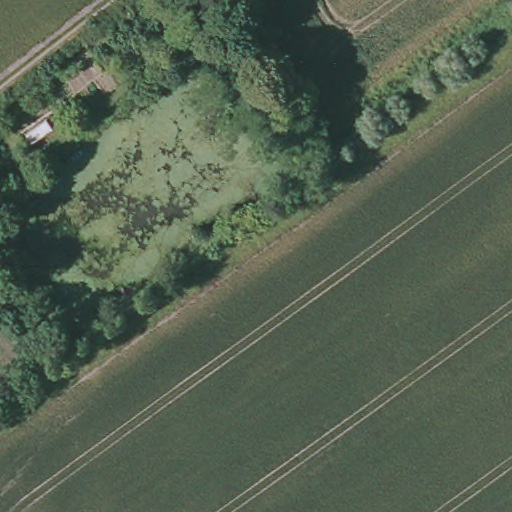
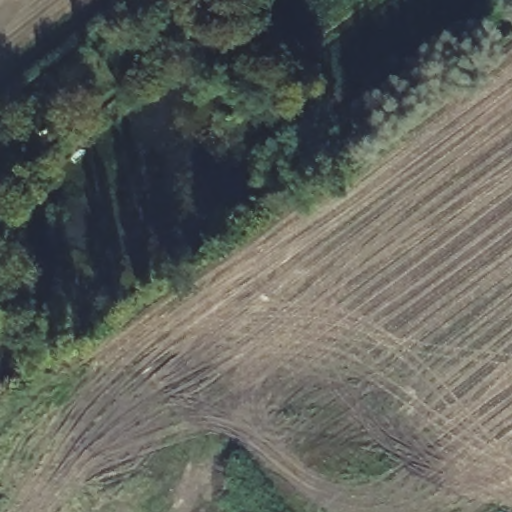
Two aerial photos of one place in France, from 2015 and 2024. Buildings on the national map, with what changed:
unchanged [(23,133),(45,117),(54,131),(30,144),(23,133)]

